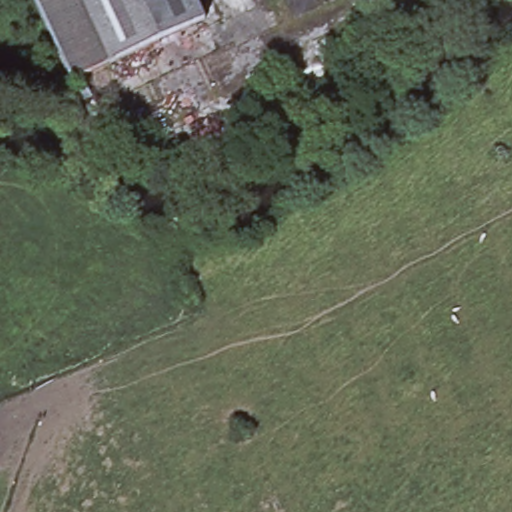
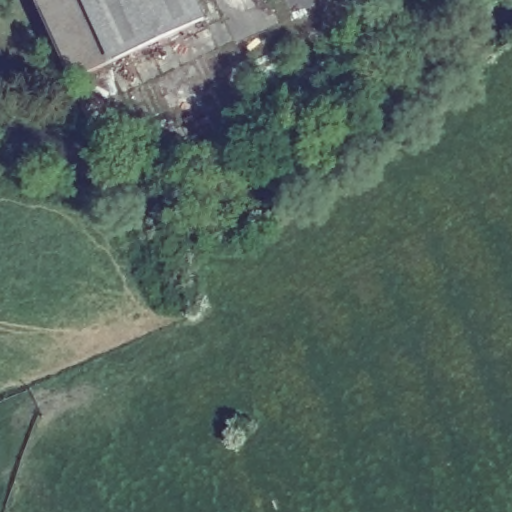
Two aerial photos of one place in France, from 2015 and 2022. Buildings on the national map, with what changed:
unchanged [(67,74),(33,0),(85,0),(110,54),(67,74)]
unchanged [(110,54),(85,0),(194,0),(200,13),(110,54)]

